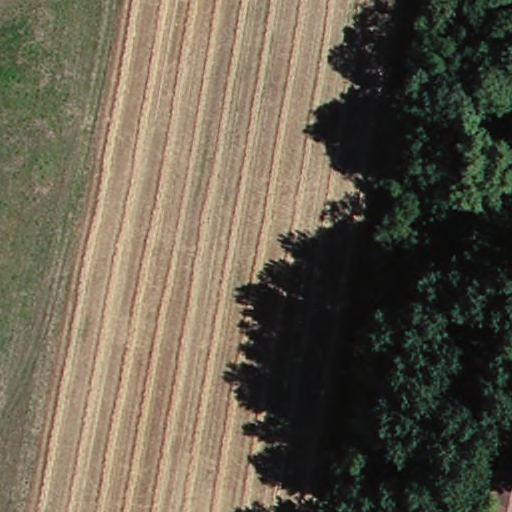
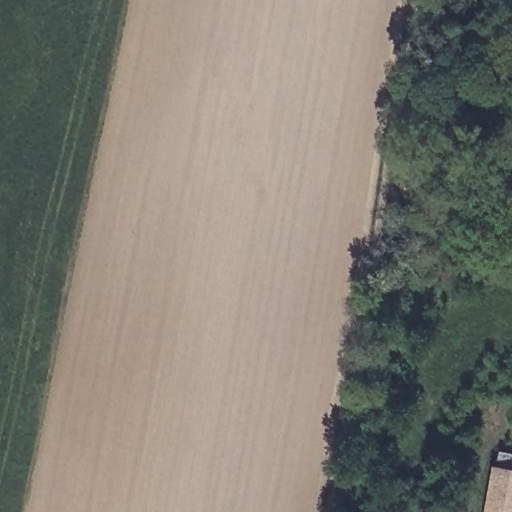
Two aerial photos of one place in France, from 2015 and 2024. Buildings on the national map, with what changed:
demolished [(489,512),(494,466),(512,468),(512,512),(489,512)]
new [(507,512),(512,494),(512,512),(507,512)]

